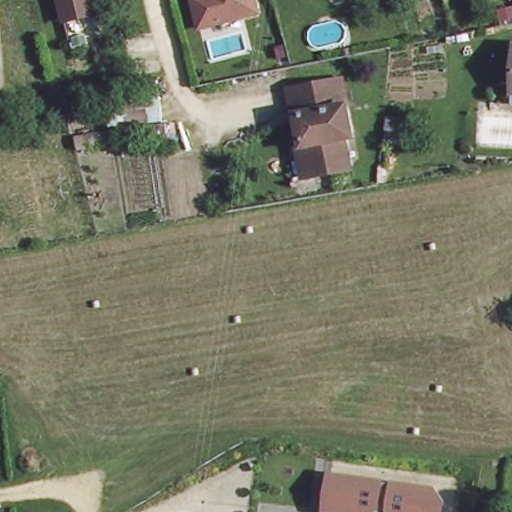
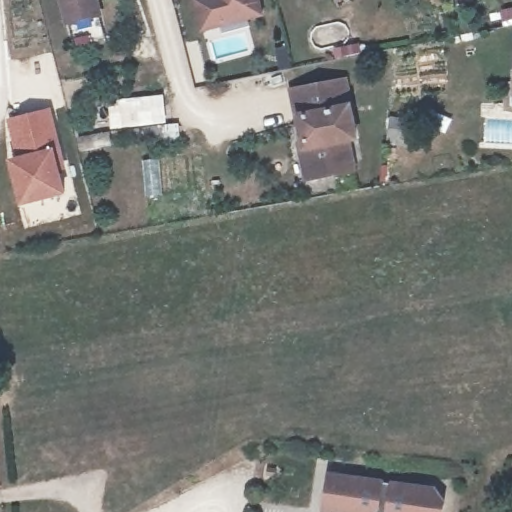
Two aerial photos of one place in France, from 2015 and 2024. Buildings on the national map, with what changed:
unchanged [(97,4),(67,12),(63,0),(96,0),(97,4)]
unchanged [(199,0),(262,0),(265,11),(223,22),(206,26),(199,0)]
unchanged [(336,171),(314,176),(307,138),(314,136),(309,113),(299,114),(294,88),(348,78),(358,136),(351,137),(355,160),(356,167),(336,171)]
new [(164,94),(167,124),(110,131),(107,100),(164,94)]
new [(52,107),(60,146),(14,155),(7,118),(52,107)]
new [(14,155),(60,146),(68,193),(20,206),(8,157),(14,155)]
unchanged [(436,488),(445,502),(443,512),(321,512),(326,475),(436,488)]

